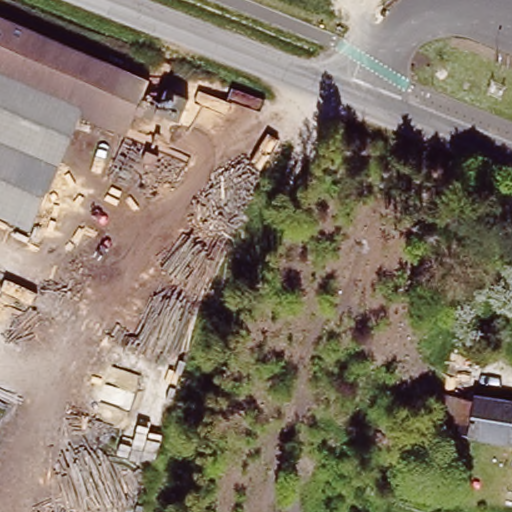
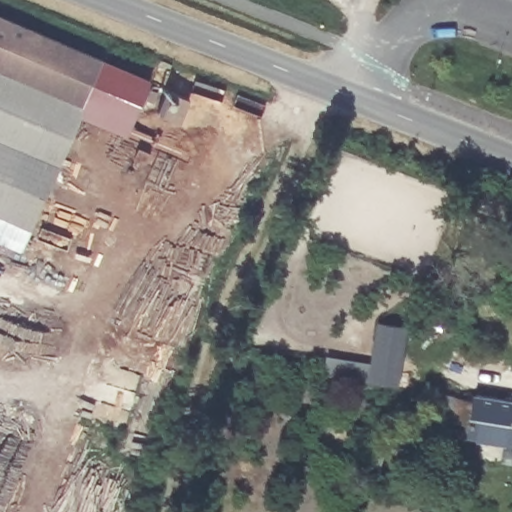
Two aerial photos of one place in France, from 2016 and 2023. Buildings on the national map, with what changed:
unchanged [(154,79),(148,95),(164,96),(168,86),(189,98),(177,117),(157,107),(147,135),(132,120),(126,139),(82,117),(32,234),(0,220),(0,11),(154,79)]
new [(326,358),(369,364),(375,324),(405,329),(396,387),(324,377),(326,358)]
unchanged [(478,397),(512,402),(512,439),(474,434),(478,397)]

